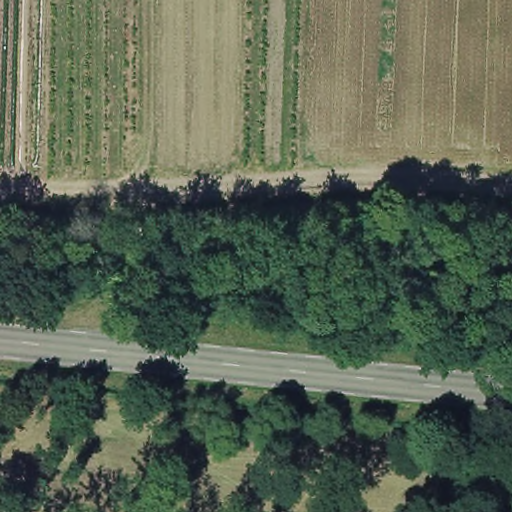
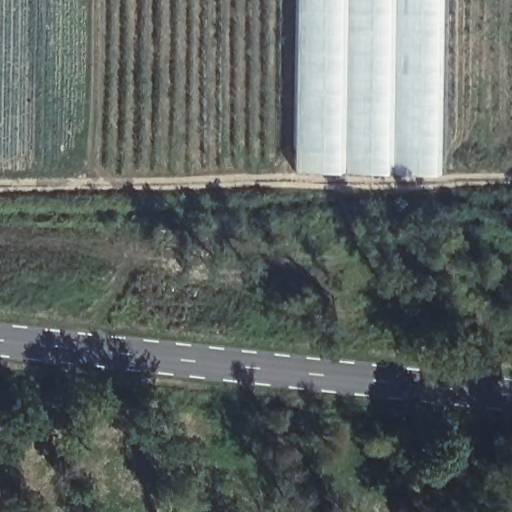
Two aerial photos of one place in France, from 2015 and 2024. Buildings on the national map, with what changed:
new [(442,174),(292,171),(295,0),(444,0),(442,174)]

